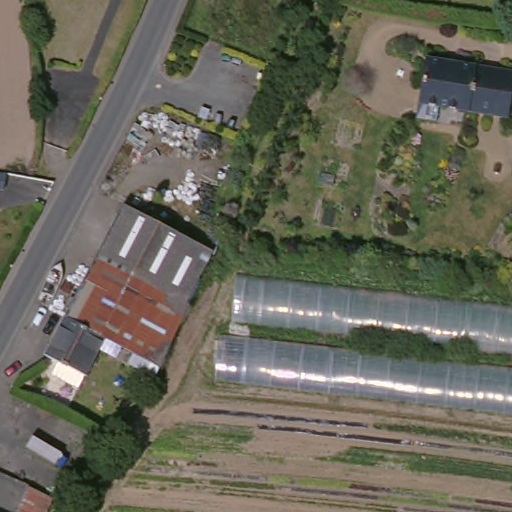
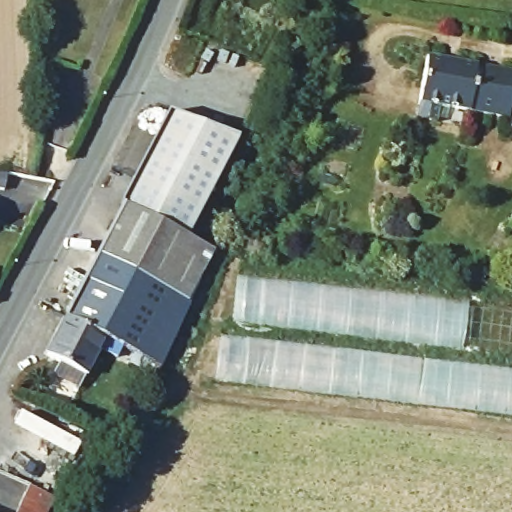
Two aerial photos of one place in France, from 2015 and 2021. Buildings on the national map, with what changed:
unchanged [(512,79),(506,120),(415,106),(423,57),(512,79)]
new [(168,112),(239,138),(186,241),(122,206),(168,112)]
unchanged [(156,369),(99,341),(62,322),(122,206),(209,254),(209,255),(156,369)]
unchanged [(227,339),(231,282),(512,310),(512,420),(207,382),(213,337),(227,339)]
unchanged [(99,341),(76,389),(47,373),(52,363),(43,359),(62,322),(99,341)]
unchanged [(27,493),(54,506),(51,512),(19,512),(27,493)]

